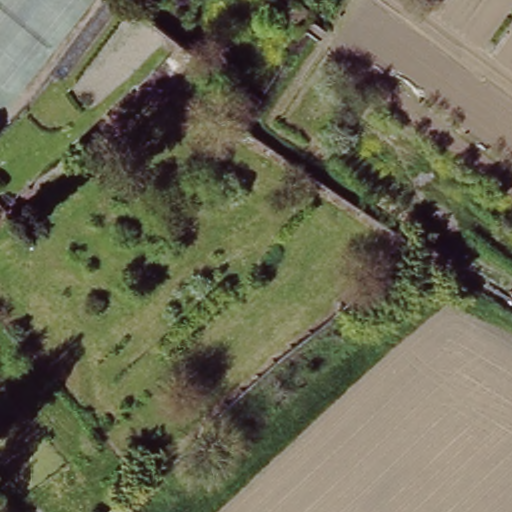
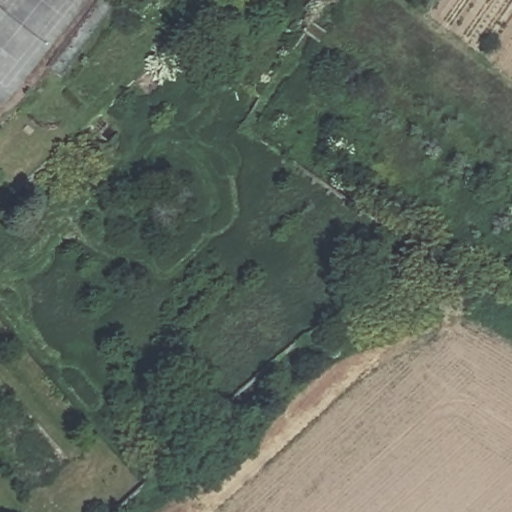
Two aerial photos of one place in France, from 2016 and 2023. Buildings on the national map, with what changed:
unchanged [(60,69),(50,61),(95,0),(111,0),(60,69)]
unchanged [(82,137),(94,123),(113,137),(100,150),(82,137)]

